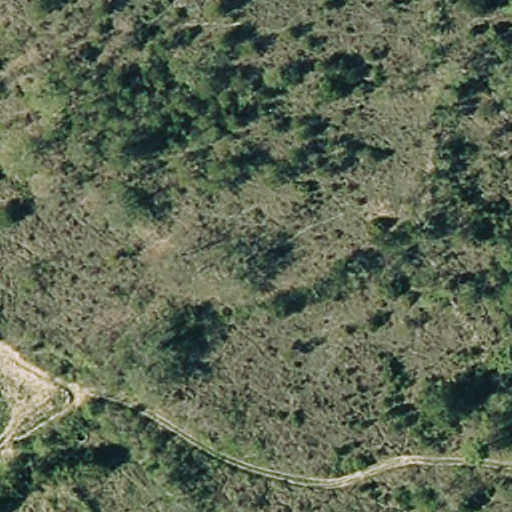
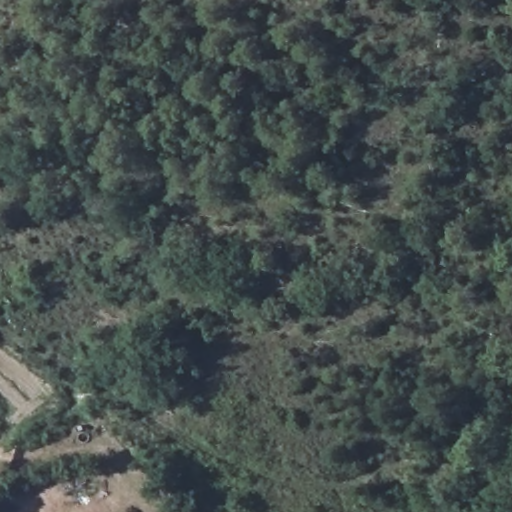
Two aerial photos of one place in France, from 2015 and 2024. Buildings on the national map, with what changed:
[]

